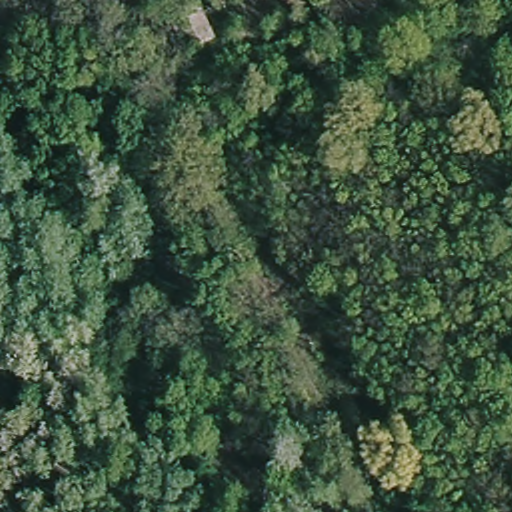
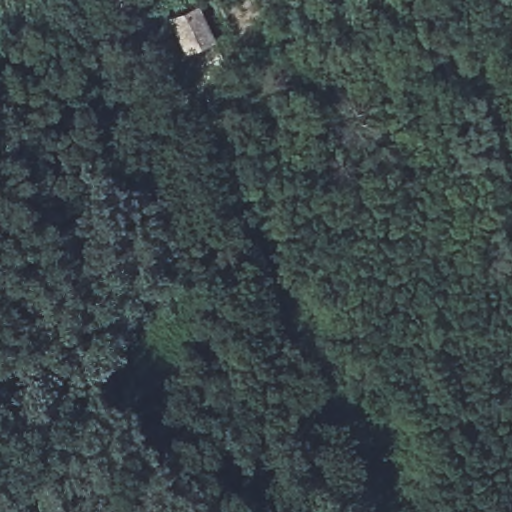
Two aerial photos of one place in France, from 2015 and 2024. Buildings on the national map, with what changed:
unchanged [(189,47),(170,12),(196,0),(199,0),(216,35),(189,47)]
unchanged [(281,85),(290,73),(301,81),(292,93),(281,85)]

